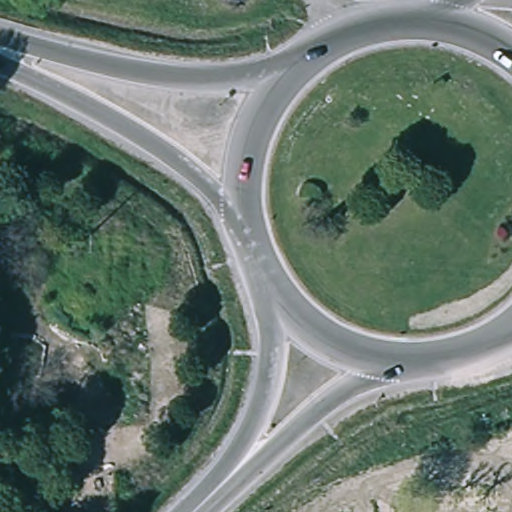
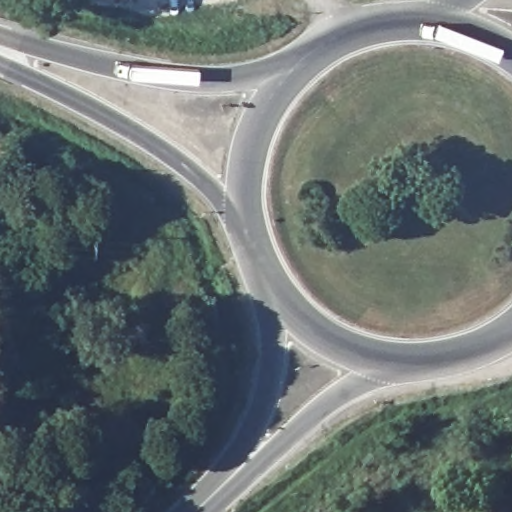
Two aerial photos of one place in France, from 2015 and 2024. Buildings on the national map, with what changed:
unchanged [(20,347),(0,347),(0,330),(21,331),(20,347)]

